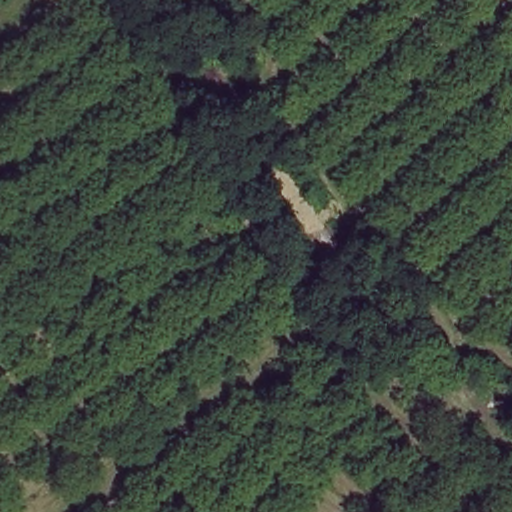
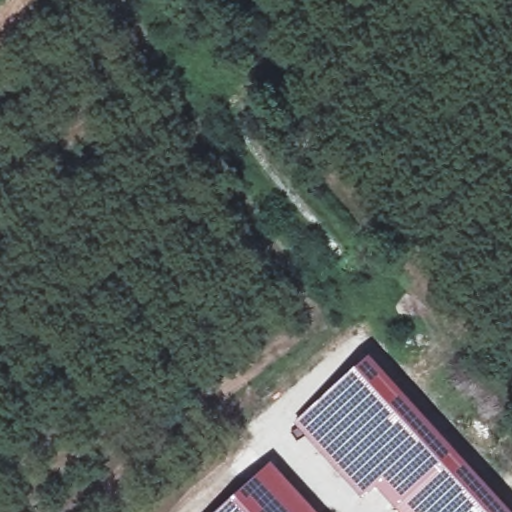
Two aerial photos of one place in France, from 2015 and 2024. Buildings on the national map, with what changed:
new [(373,488),(360,500),(292,423),(366,356),(507,512),(393,512),(373,488)]
new [(270,461),(316,512),(216,512),(270,461)]

